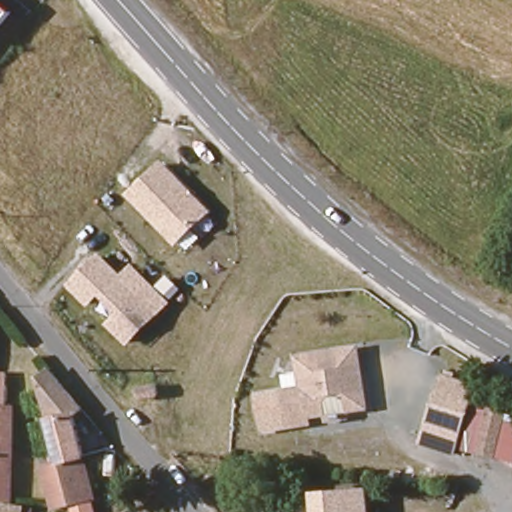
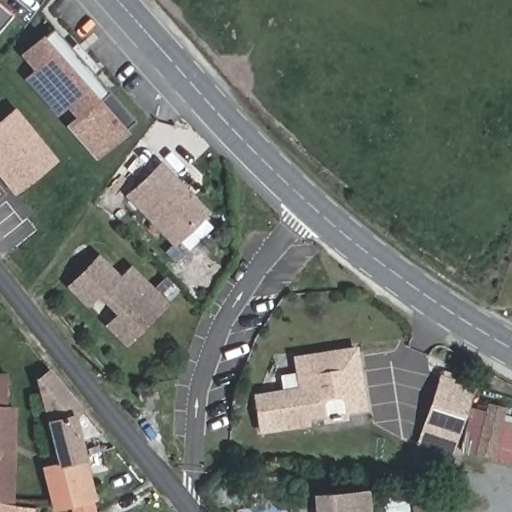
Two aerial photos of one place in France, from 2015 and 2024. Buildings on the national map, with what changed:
unchanged [(0,4),(14,15),(0,32),(0,4)]
new [(94,71),(110,92),(101,100),(104,103),(80,122),(67,107),(57,116),(24,78),(34,69),(21,53),(42,33),(45,36),(55,28),(70,45),(76,40),(100,68),(94,71)]
new [(136,120),(125,128),(127,131),(96,160),(66,126),(75,116),(80,122),(104,103),(101,100),(110,92),(136,120)]
new [(59,159),(20,190),(0,167),(0,126),(20,110),(59,159)]
unchanged [(213,213),(175,247),(126,194),(164,160),(213,213)]
unchanged [(100,254),(121,275),(132,264),(172,303),(128,349),(105,325),(119,313),(103,295),(87,309),(67,286),(100,254)]
unchanged [(255,394),(281,389),(301,386),(296,355),(357,345),(366,406),(346,409),(346,415),(326,418),(325,412),(307,414),(308,422),(287,424),(261,429),(255,394)]
unchanged [(71,502),(56,506),(55,504),(45,464),(60,461),(39,376),(51,368),(84,407),(75,413),(85,456),(95,496),(89,498),(91,512),(90,512),(73,512),(71,502)]
unchanged [(418,446),(425,425),(443,373),(476,384),(458,437),(450,456),(418,446)]
unchanged [(0,503),(0,379),(8,379),(7,409),(15,409),(12,505),(0,503)]
unchanged [(169,403),(150,407),(148,397),(166,393),(169,403)]
unchanged [(495,456),(476,451),(461,448),(472,404),(487,408),(489,399),(507,404),(505,415),(512,417),(512,459),(495,456)]
unchanged [(368,512),(316,512),(315,497),(366,492),(368,512)]
unchanged [(0,504),(25,509),(25,512),(0,512),(0,504)]

